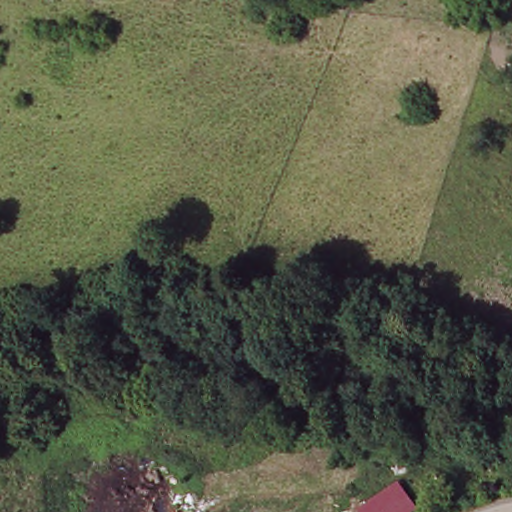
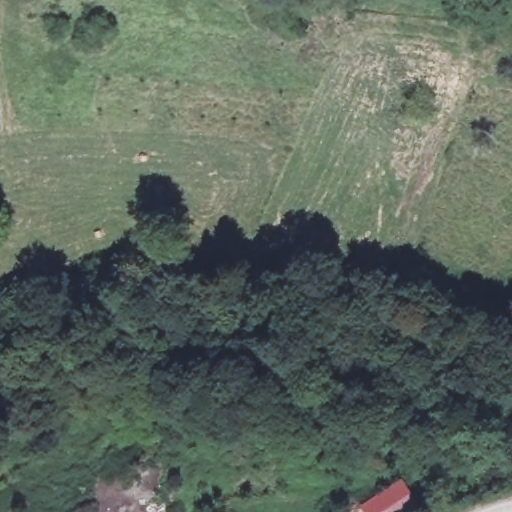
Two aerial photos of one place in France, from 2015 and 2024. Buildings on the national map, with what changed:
unchanged [(417,509),(414,512),(362,512),(360,509),(400,482),(417,509)]

